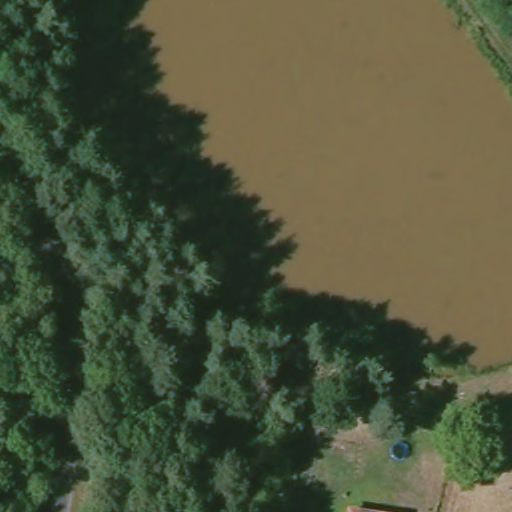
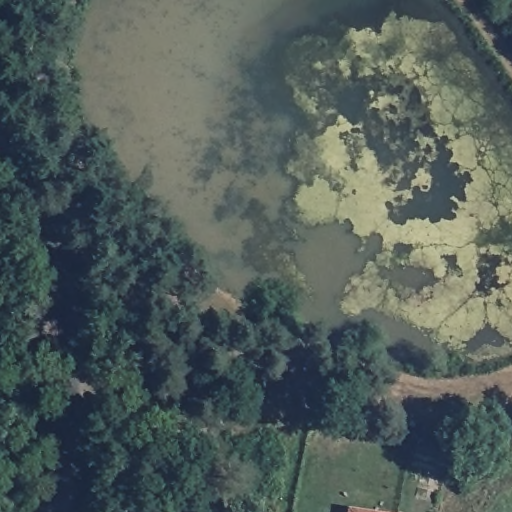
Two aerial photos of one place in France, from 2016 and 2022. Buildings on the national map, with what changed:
unchanged [(346,509),(366,512),(345,512),(346,509)]

